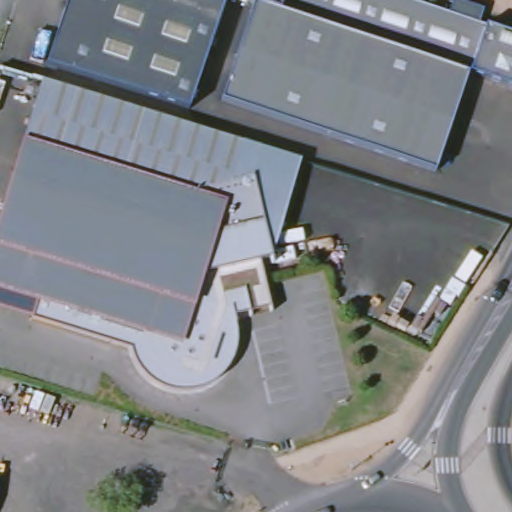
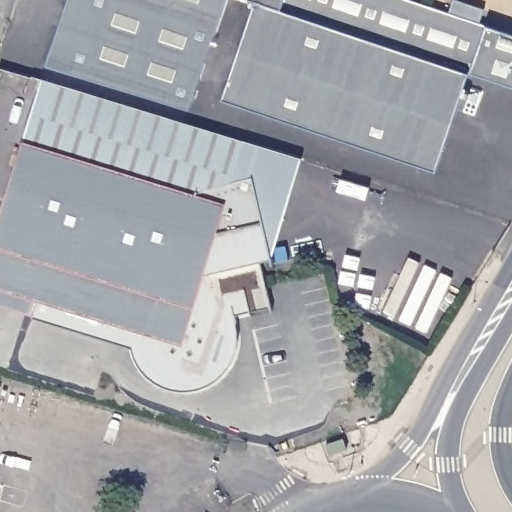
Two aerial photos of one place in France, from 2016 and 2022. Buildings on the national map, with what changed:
unchanged [(48,66),(71,0),(229,0),(190,110),(148,97),(48,66)]
unchanged [(512,36),(512,88),(492,81),(470,74),(311,20),(257,2),(251,0),(402,0),(422,7),(450,15),(455,2),(485,12),(485,14),(497,17),(493,30),(512,36)]
unchanged [(311,20),(470,74),(442,159),(228,88),(257,2),(311,20)]
unchanged [(41,80),(242,141),(230,182),(179,195),(20,146),(41,80)]
unchanged [(230,182),(250,176),(273,263),(262,266),(275,312),(237,321),(238,326),(240,331),(240,336),(240,341),(240,346),(238,350),(237,355),(235,360),(233,365),(231,368),(228,373),(225,377),(222,380),(218,383),(213,387),(210,389),(205,391),(200,393),(195,394),(190,395),(185,396),(180,396),(175,396),(170,395),(166,393),(161,392),(157,390),(152,387),(148,385),(144,382),(140,378),(137,375),(134,371),(132,366),(130,362),(127,357),(126,352),(125,347),(30,317),(37,293),(0,282),(0,213),(20,146),(179,195),(230,182)]

